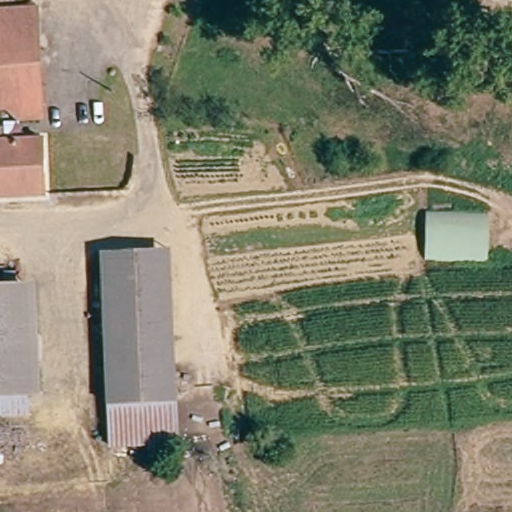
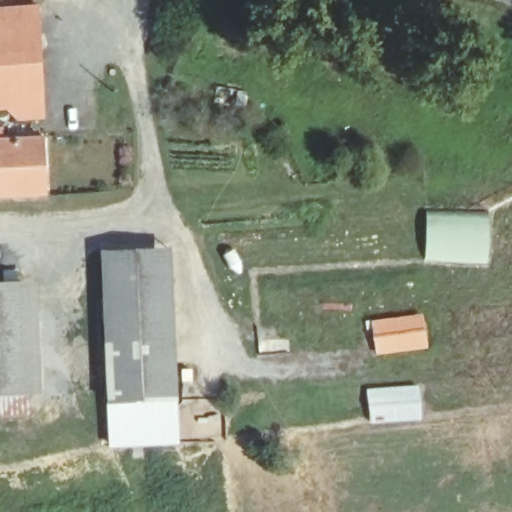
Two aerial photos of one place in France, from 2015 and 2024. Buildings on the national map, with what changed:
unchanged [(43,126),(19,126),(19,114),(0,114),(0,14),(39,15),(39,21),(43,126)]
unchanged [(0,195),(0,141),(42,140),(44,195),(0,195)]
unchanged [(424,261),(426,214),(488,215),(488,260),(424,261)]
unchanged [(103,252),(173,249),(179,403),(181,444),(112,448),(108,404),(103,252)]
unchanged [(0,393),(0,285),(39,285),(39,393),(0,393)]
new [(378,355),(374,321),(424,315),(428,349),(378,355)]
new [(422,421),(370,423),(368,392),(420,386),(422,421)]
new [(31,393),(33,416),(0,416),(0,393),(31,393)]

